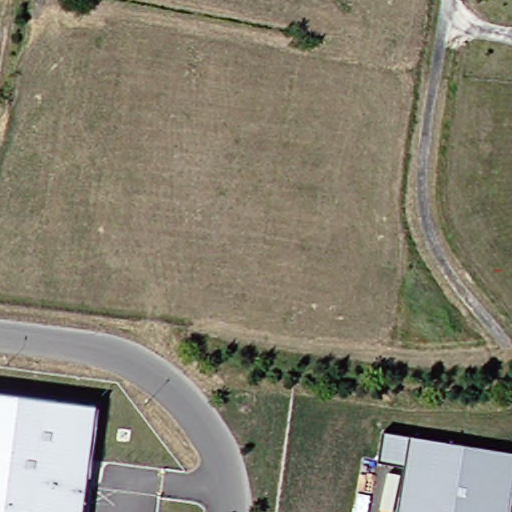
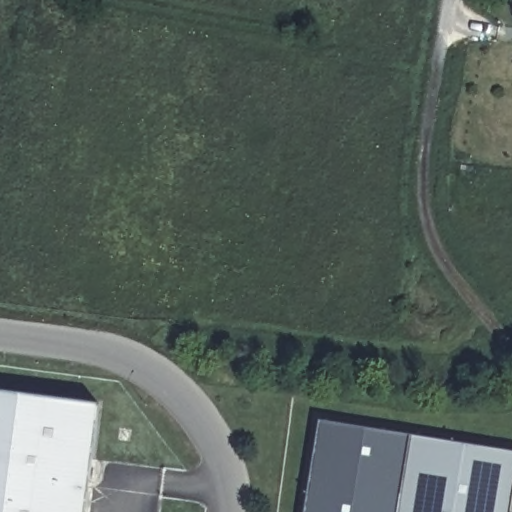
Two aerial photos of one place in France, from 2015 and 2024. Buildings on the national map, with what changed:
unchanged [(86,512),(0,512),(0,385),(100,398),(86,512)]
new [(321,422),(387,433),(382,460),(408,463),(400,512),(307,512),(321,422)]
unchanged [(408,463),(382,460),(387,433),(411,437),(512,452),(512,501),(510,512),(400,512),(408,463)]

